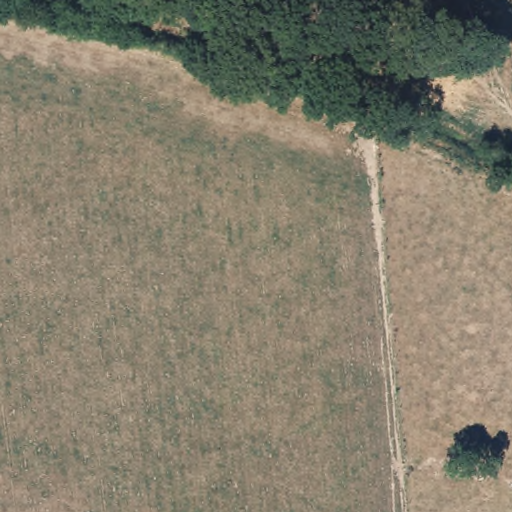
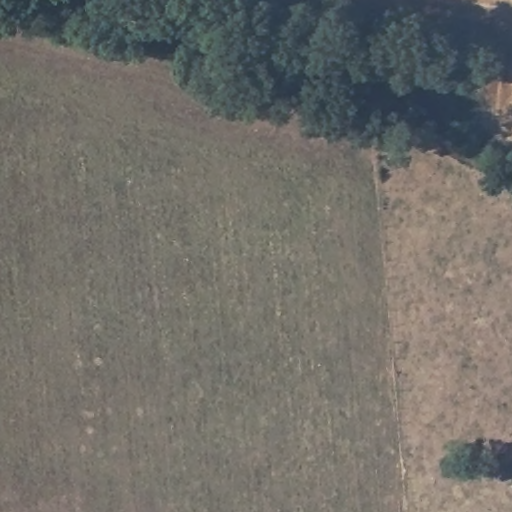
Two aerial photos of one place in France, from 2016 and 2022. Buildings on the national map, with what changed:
[]

